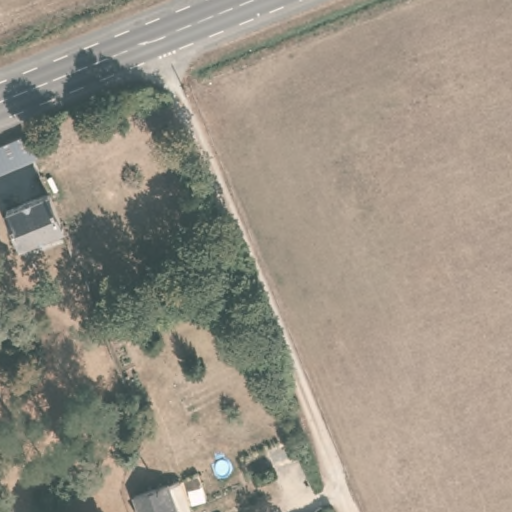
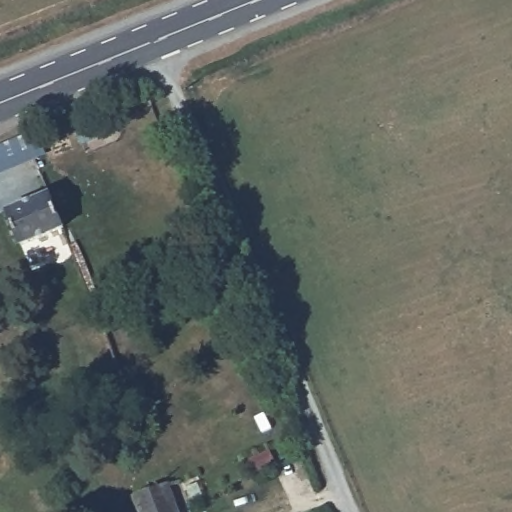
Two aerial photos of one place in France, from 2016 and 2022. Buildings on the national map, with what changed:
unchanged [(31,147),(0,161),(0,144),(25,135),(31,147)]
unchanged [(24,245),(8,209),(49,192),(64,229),(24,245)]
unchanged [(130,498),(160,486),(171,512),(135,512),(130,498)]

